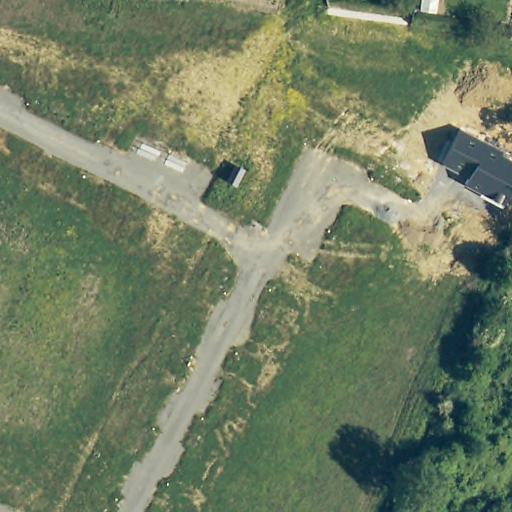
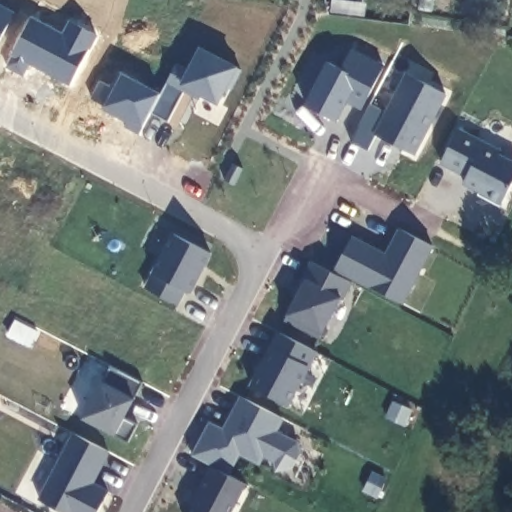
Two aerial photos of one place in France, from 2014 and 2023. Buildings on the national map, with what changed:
new [(347,95),(336,115),(306,100),(328,57),(341,64),(351,44),(383,61),(362,102),(347,95)]
new [(178,61),(191,68),(202,46),(242,66),(232,86),(227,84),(219,100),(197,89),(195,92),(186,87),(170,119),(152,110),(178,61)]
new [(416,154),(378,135),(370,150),(353,141),(372,104),(387,112),(408,72),(448,94),(416,154)]
unchanged [(459,129),(503,150),(501,155),(512,160),(512,184),(500,204),(463,185),(467,179),(441,165),(459,129)]
new [(230,169),(240,174),(232,188),(222,183),(230,169)]
new [(404,303),(337,267),(353,235),(389,252),(401,227),(437,247),(404,303)]
new [(145,287),(152,271),(174,232),(213,254),(192,295),(186,290),(178,305),(145,287)]
new [(286,321),(288,313),(306,277),(314,262),(352,282),(344,300),(341,297),(323,332),(320,339),(286,321)]
new [(13,318),(39,332),(30,347),(5,334),(13,318)]
new [(251,384),(278,331),(316,352),(288,405),(251,384)]
new [(83,417),(104,380),(111,366),(144,383),(136,398),(125,418),(138,423),(128,442),(83,417)]
new [(212,464),(192,453),(209,420),(223,427),(239,395),(283,417),(277,430),(299,441),(302,450),(293,468),(276,470),(275,462),(263,456),(259,464),(241,453),(231,474),(247,485),(233,512),(189,512),(212,464)]
new [(394,401),(412,410),(404,426),(386,417),(394,401)]
new [(39,500),(75,432),(110,452),(92,482),(108,491),(98,512),(62,512),(39,500)]
new [(370,473),(386,480),(379,498),(363,492),(370,473)]

